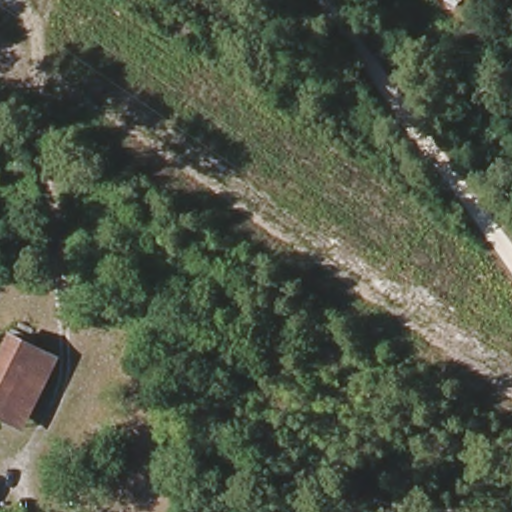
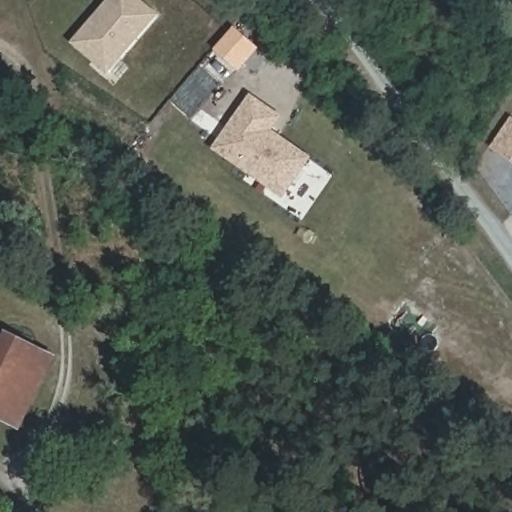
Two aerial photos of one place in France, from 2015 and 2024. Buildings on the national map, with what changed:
new [(71,42),(108,0),(144,0),(160,14),(107,76),(71,42)]
unchanged [(444,0),(460,0),(454,8),(444,0)]
new [(313,157),(283,200),(211,150),(249,94),(284,117),(274,131),(313,157)]
unchanged [(0,418),(0,345),(4,337),(31,349),(2,420),(0,418)]
unchanged [(58,362),(24,431),(2,420),(31,349),(58,362)]

